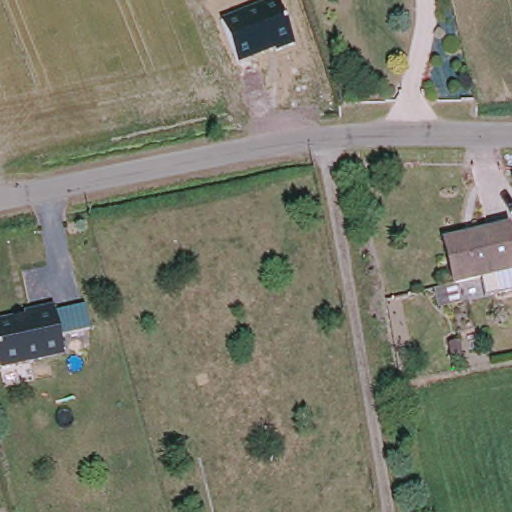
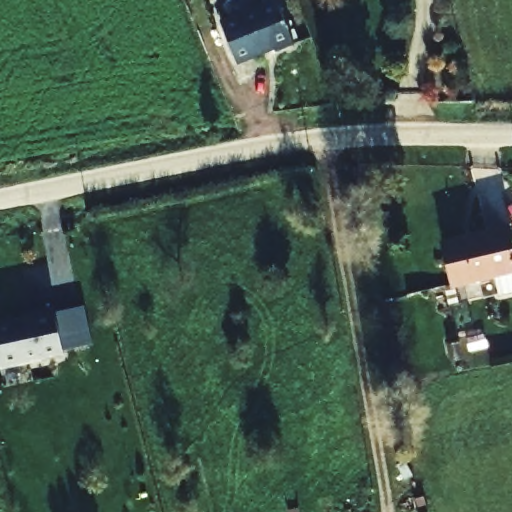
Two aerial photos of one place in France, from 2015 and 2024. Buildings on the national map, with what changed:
unchanged [(275,0),(277,0),(293,42),(238,67),(220,23),(275,0)]
unchanged [(512,244),(512,298),(508,299),(502,275),(455,286),(445,242),(508,229),(512,244)]
unchanged [(60,356),(0,369),(0,320),(52,308),(60,356)]

